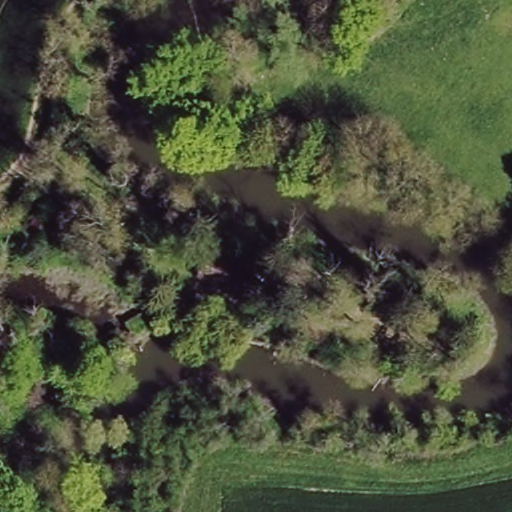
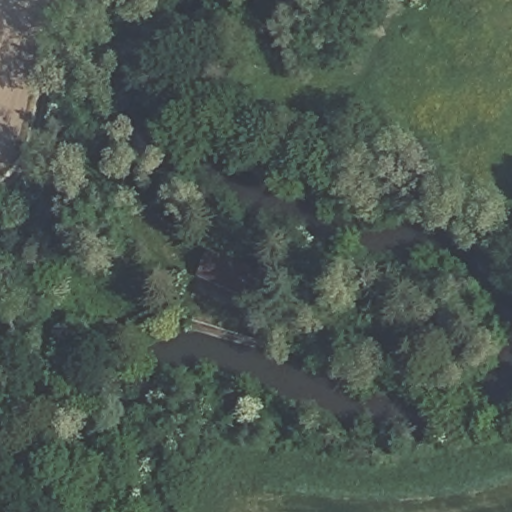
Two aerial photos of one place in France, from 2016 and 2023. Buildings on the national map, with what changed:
unchanged [(201,251),(248,261),(243,285),(196,275),(201,251)]

